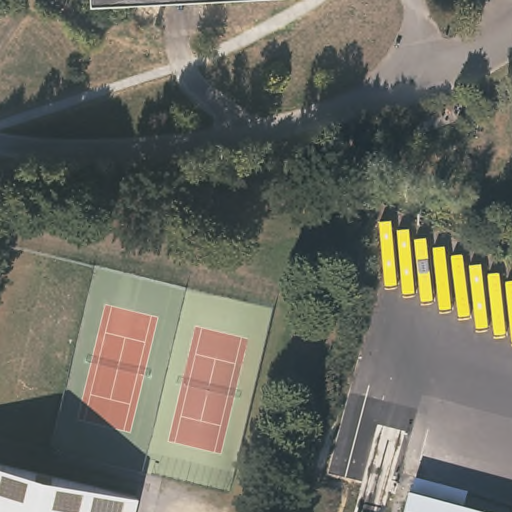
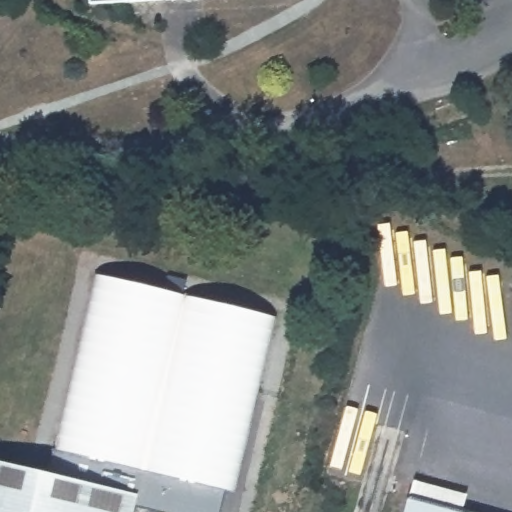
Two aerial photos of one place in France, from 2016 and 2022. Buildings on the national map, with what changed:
demolished [(482,117),(423,139),(416,121),(476,98),(482,117)]
new [(272,314),(231,489),(225,512),(173,512),(135,502),(138,491),(54,471),(62,446),(103,274),(272,314)]
unchanged [(133,512),(0,512),(0,459),(138,491),(133,512)]
unchanged [(404,496),(465,512),(400,512),(404,496)]

